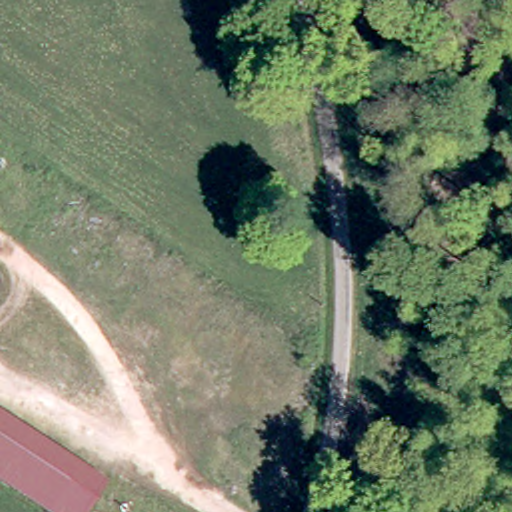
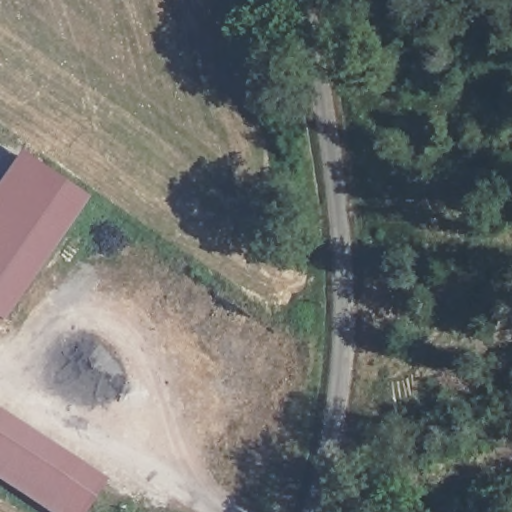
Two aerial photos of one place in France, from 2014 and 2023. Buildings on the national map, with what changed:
new [(0,316),(0,181),(21,151),(90,197),(5,319),(0,316)]
unchanged [(0,417),(102,485),(84,512),(44,512),(0,483),(0,417)]

